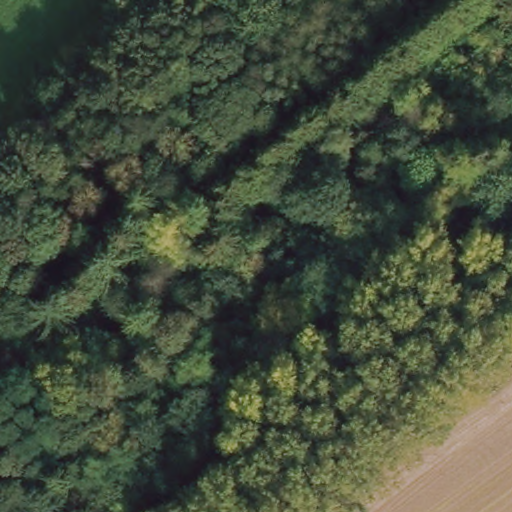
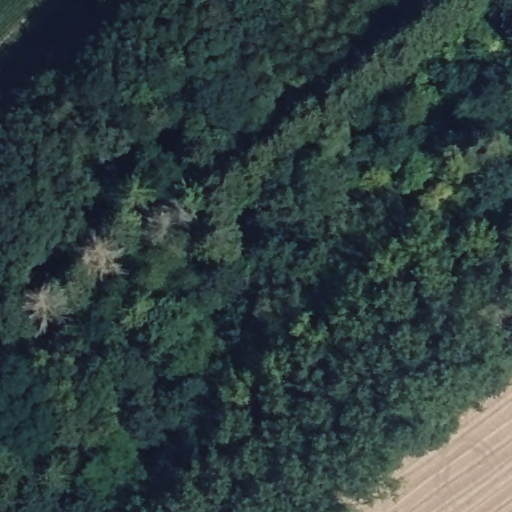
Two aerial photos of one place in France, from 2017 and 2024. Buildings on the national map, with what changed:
unchanged [(90,262),(106,284),(72,308),(56,286),(90,262)]

